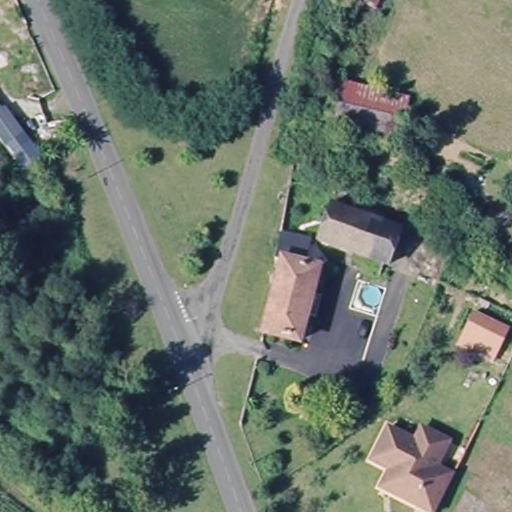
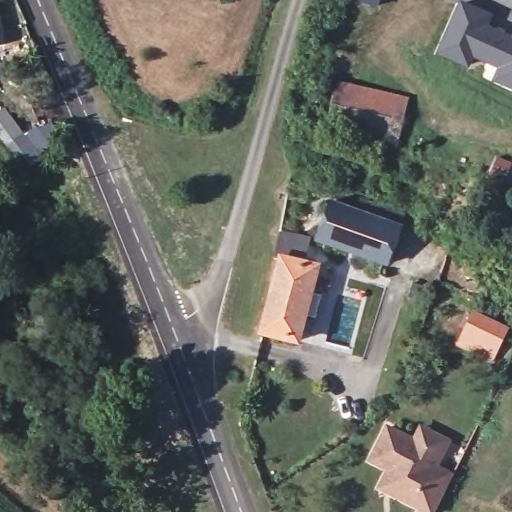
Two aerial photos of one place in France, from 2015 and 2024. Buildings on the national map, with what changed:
unchanged [(363,0),(377,0),(375,6),(363,0)]
new [(460,0),(493,13),(490,23),(512,33),(512,89),(490,80),(496,68),(473,58),(468,69),(435,54),(459,0),(460,0)]
new [(0,45),(0,11),(5,44),(0,45)]
unchanged [(339,84),(413,99),(401,157),(328,136),(339,84)]
new [(21,169),(0,140),(0,106),(3,110),(6,106),(41,156),(21,169)]
unchanged [(380,261),(330,242),(340,209),(392,226),(380,261)]
unchanged [(286,257),(320,266),(305,341),(270,330),(286,257)]
unchanged [(510,327),(493,363),(457,347),(475,310),(510,327)]
unchanged [(383,466),(371,459),(388,426),(413,440),(419,430),(445,443),(439,454),(432,470),(450,479),(432,512),(424,512),(385,492),(373,486),(383,466)]

